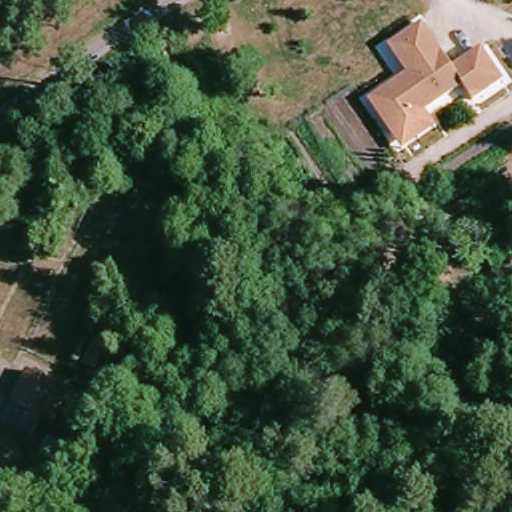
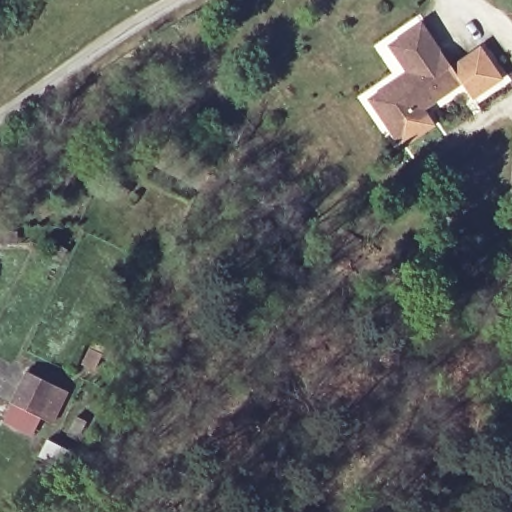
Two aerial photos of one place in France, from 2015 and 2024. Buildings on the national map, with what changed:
unchanged [(507,77),(472,101),(461,84),(426,107),(436,126),(400,148),(366,95),(407,70),(388,41),(421,20),(452,65),(482,45),(507,77)]
unchanged [(119,185),(128,190),(124,196),(116,191),(119,185)]
unchanged [(82,364),(88,348),(93,339),(106,345),(102,354),(95,369),(82,364)]
unchanged [(11,401),(25,373),(66,393),(52,422),(39,415),(29,434),(3,421),(12,402),(11,401)]
unchanged [(79,436),(70,431),(76,417),(86,422),(79,436)]
unchanged [(67,470),(40,456),(48,439),(76,454),(67,470)]

